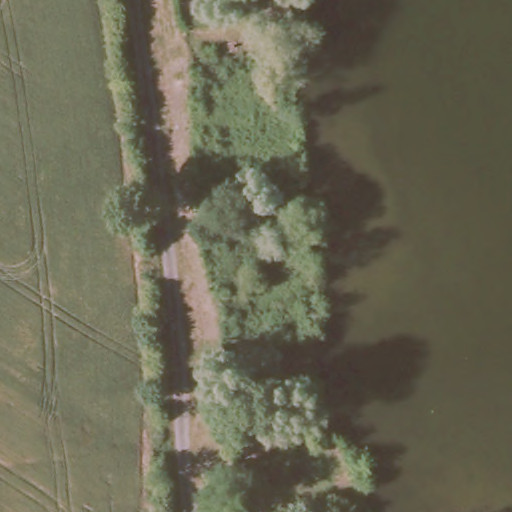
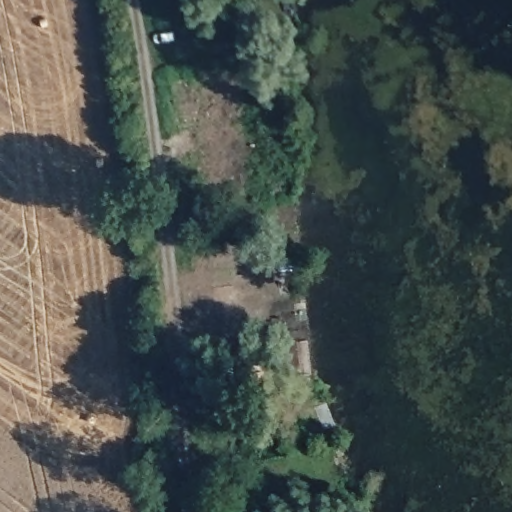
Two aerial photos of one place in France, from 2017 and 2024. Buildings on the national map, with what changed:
unchanged [(252,420),(251,403),(230,403),(228,369),(246,368),(246,388),(273,387),(275,421),(252,420)]

